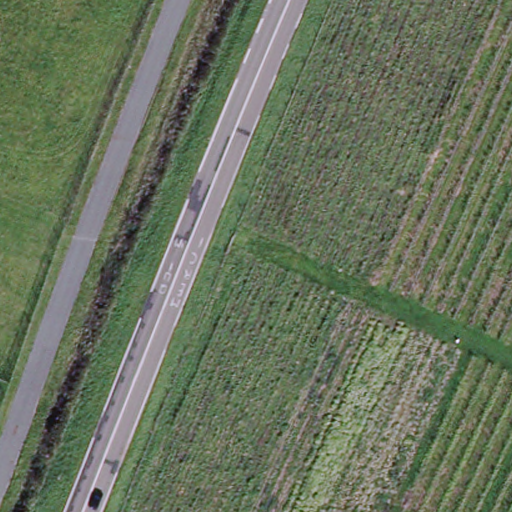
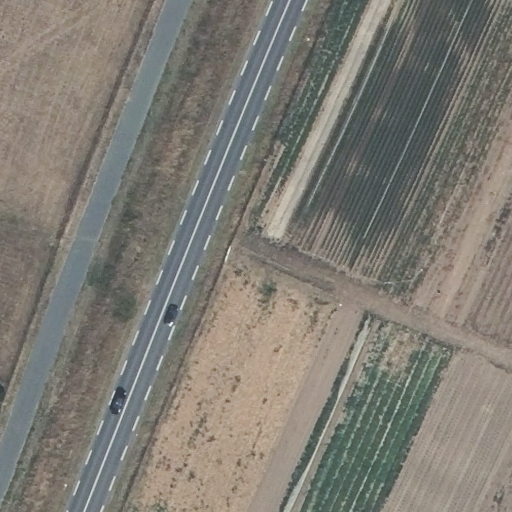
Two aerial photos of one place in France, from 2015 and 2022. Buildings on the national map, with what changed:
[]

